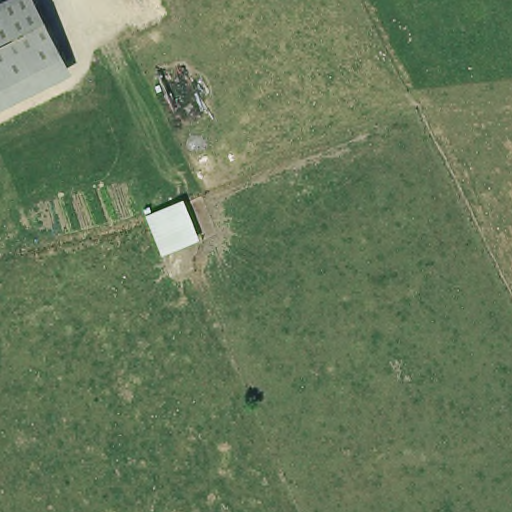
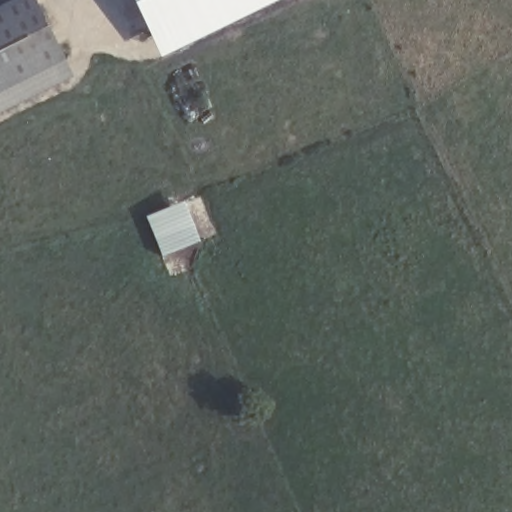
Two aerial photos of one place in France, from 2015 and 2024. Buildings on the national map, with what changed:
unchanged [(44,14),(65,56),(0,88),(0,4),(9,0),(37,0),(44,14)]
new [(162,60),(133,0),(279,0),(162,60)]
unchanged [(160,251),(145,211),(172,200),(186,240),(160,251)]

